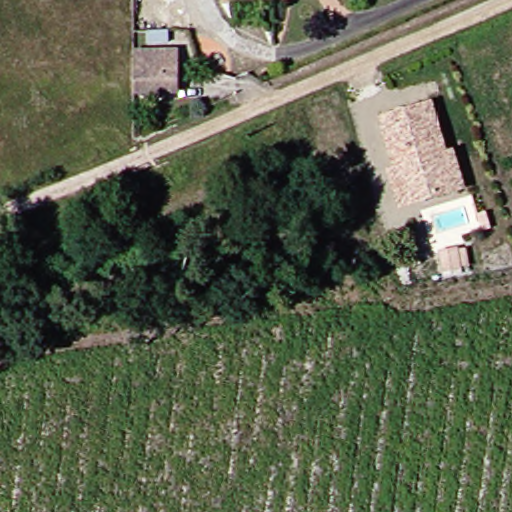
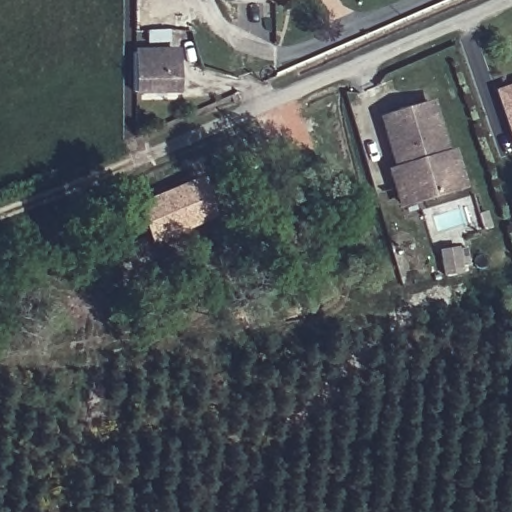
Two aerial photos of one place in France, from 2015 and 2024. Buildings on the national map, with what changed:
unchanged [(127,91),(128,45),(153,45),(152,26),(184,27),(185,52),(171,50),(172,94),(127,91)]
new [(512,84),(512,139),(495,90),(512,84)]
unchanged [(398,171),(405,168),(383,120),(429,101),(449,149),(455,146),(470,177),(433,194),(412,203),(398,171)]
new [(154,245),(137,204),(202,177),(219,217),(154,245)]
unchanged [(465,260),(458,241),(474,238),(480,258),(465,260)]

